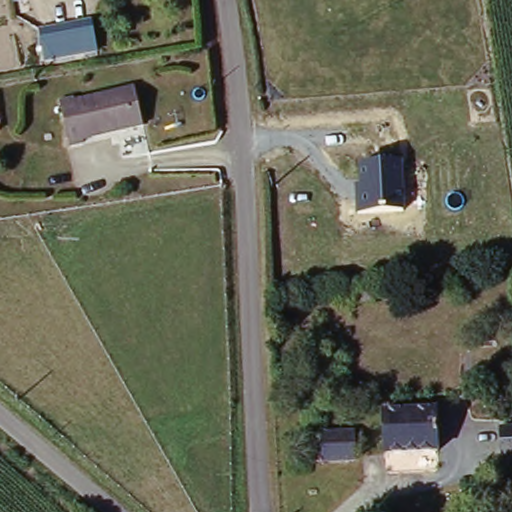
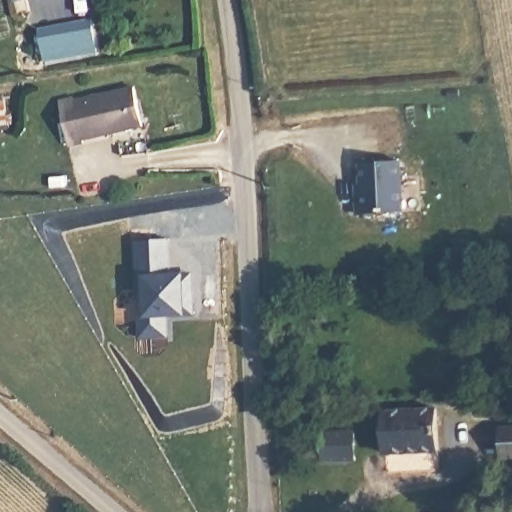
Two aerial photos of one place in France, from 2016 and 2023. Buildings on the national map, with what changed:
unchanged [(90,18),(95,49),(45,59),(40,26),(90,18)]
unchanged [(76,92),(77,97),(136,82),(145,122),(87,135),(87,139),(71,142),(61,97),(76,92)]
unchanged [(3,129),(0,129),(0,107),(3,129)]
unchanged [(357,215),(355,185),(361,185),(358,162),(402,160),(407,210),(357,215)]
new [(169,273),(184,272),(185,293),(192,292),(192,314),(166,317),(166,337),(140,339),(139,316),(146,315),(144,296),(138,296),(135,241),(167,240),(169,273)]
unchanged [(435,408),(437,451),(383,454),(382,412),(435,408)]
unchanged [(505,426),(512,425),(512,454),(507,454),(505,426)]
unchanged [(316,437),(329,437),(330,432),(362,431),(362,460),(317,462),(316,437)]

